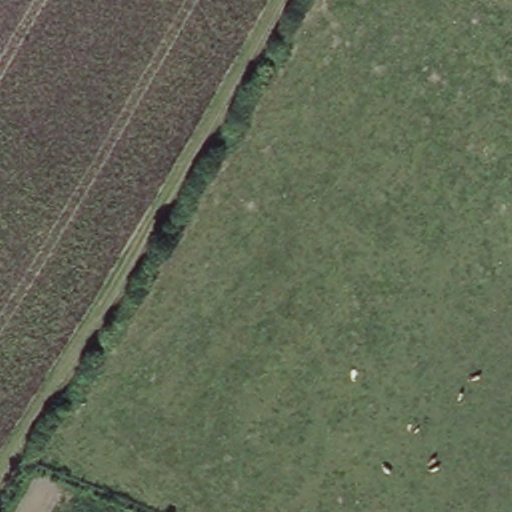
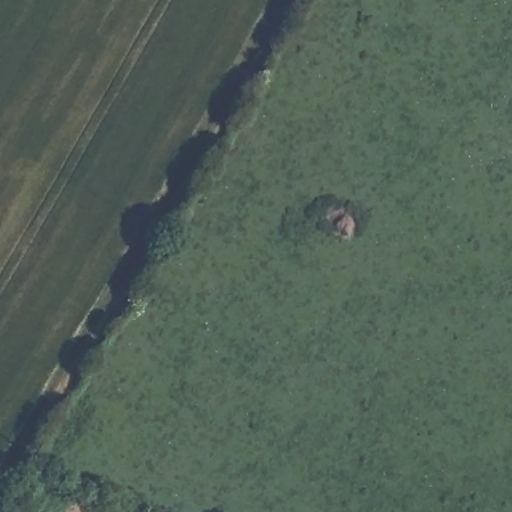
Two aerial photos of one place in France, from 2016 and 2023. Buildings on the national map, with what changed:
[]

